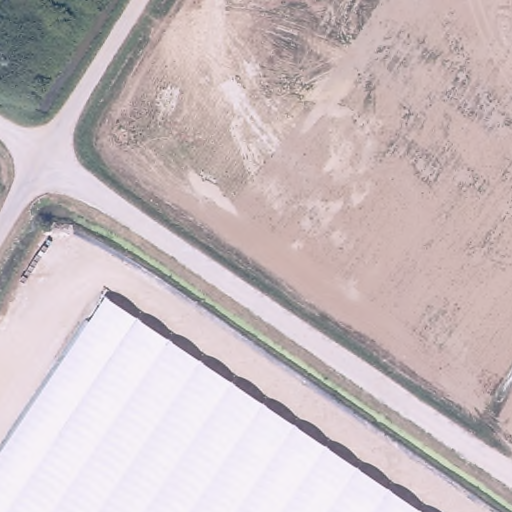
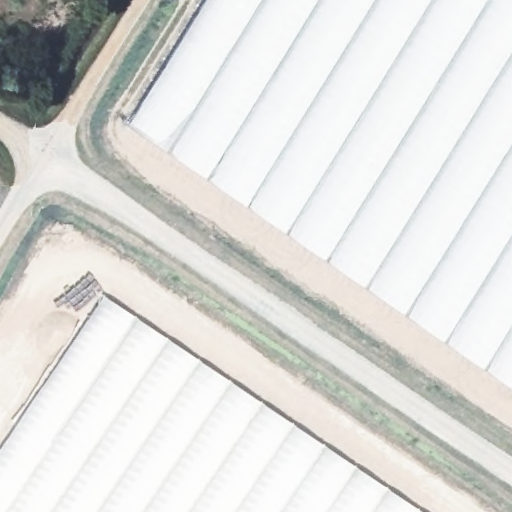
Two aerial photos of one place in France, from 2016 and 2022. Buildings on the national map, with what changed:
new [(214,0),(512,0),(512,389),(135,130),(214,0)]
unchanged [(408,512),(0,512),(0,475),(112,313),(408,512)]

